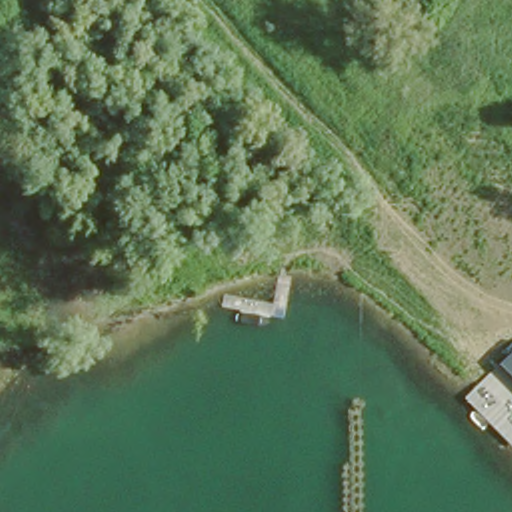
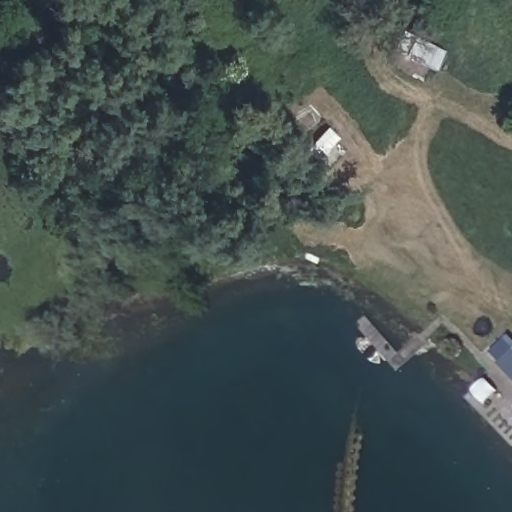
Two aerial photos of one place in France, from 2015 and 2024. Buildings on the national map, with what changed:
unchanged [(499,366),(512,354),(512,380),(499,366)]

